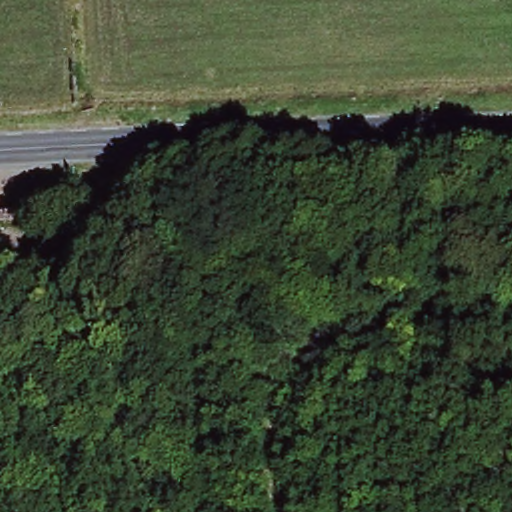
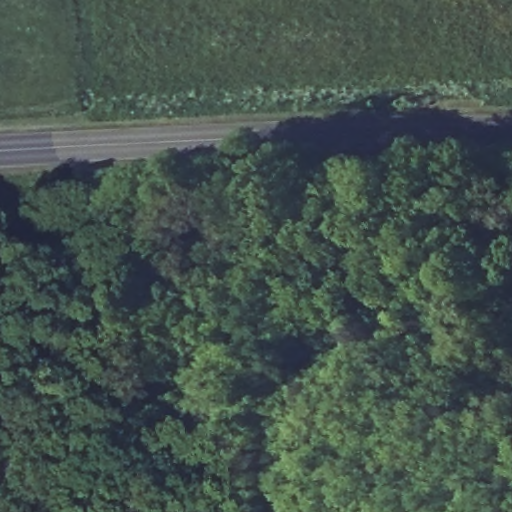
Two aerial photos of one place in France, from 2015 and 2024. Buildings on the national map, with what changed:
[]

